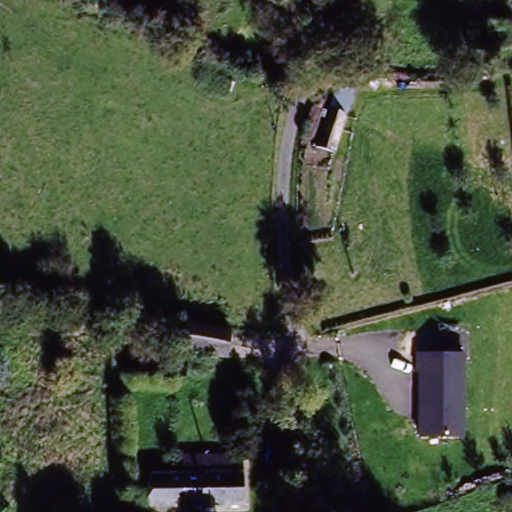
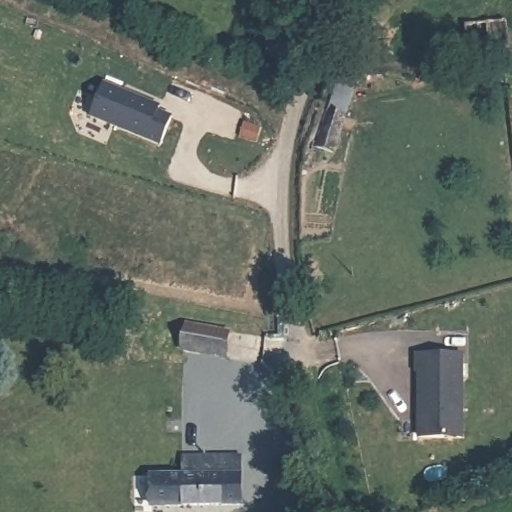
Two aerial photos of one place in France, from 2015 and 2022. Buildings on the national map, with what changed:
unchanged [(464,20),(512,17),(512,44),(466,47),(464,20)]
new [(161,106),(159,112),(174,117),(162,146),(91,117),(105,84),(161,106)]
unchanged [(332,115),(350,122),(336,157),(319,150),(332,115)]
unchanged [(171,326),(232,335),(228,367),(167,357),(171,326)]
unchanged [(463,436),(420,437),(419,352),(461,352),(463,436)]
unchanged [(201,462),(240,462),(240,512),(151,512),(151,482),(199,482),(201,462)]

